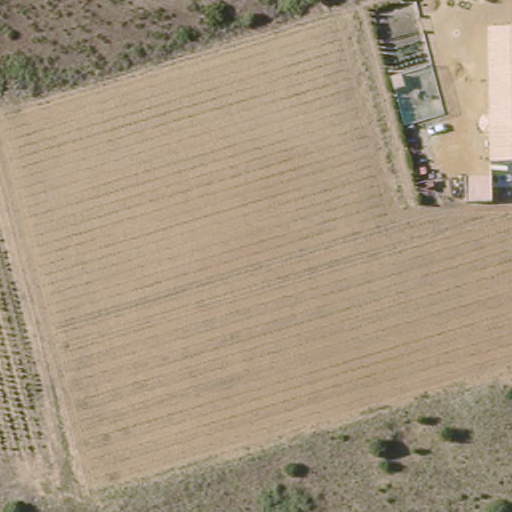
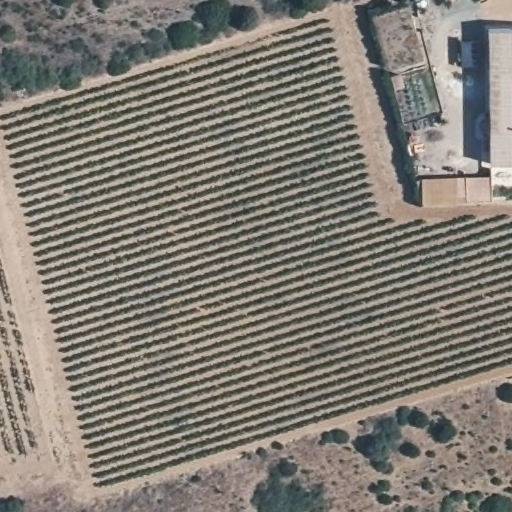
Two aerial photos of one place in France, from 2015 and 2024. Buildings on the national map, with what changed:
unchanged [(490,161),(485,26),(512,27),(512,161),(490,161)]
new [(422,205),(422,179),(490,177),(490,203),(422,205)]

